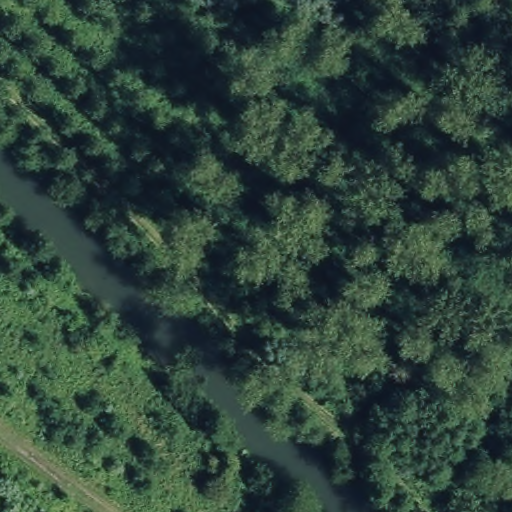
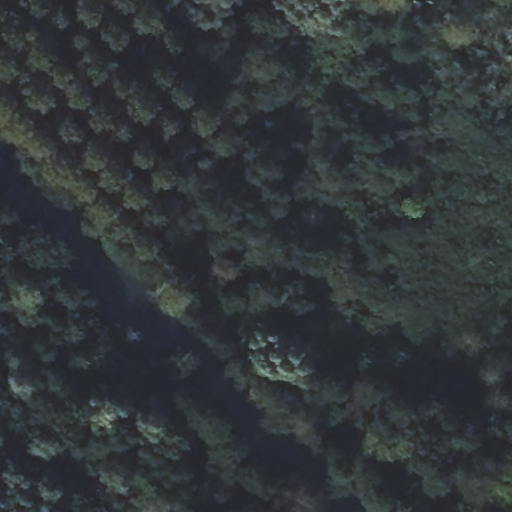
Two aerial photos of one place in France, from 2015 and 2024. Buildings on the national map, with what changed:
[]

